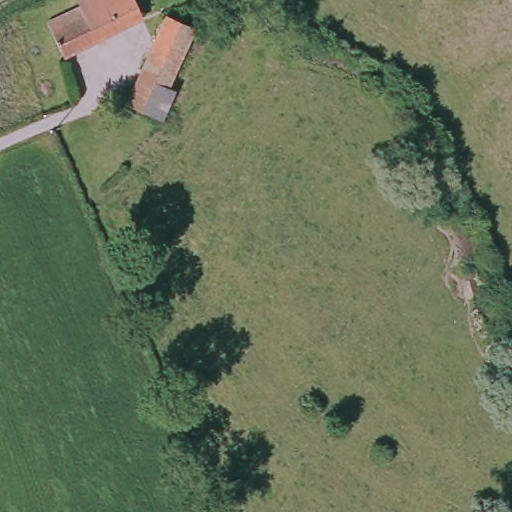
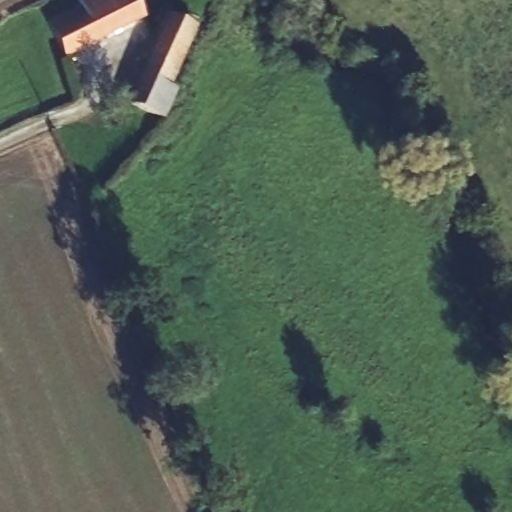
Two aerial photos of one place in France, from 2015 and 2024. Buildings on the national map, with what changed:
unchanged [(43,31),(112,0),(146,0),(155,18),(138,24),(140,28),(59,65),(43,31)]
unchanged [(147,113),(145,116),(123,106),(168,8),(192,28),(167,79),(171,81),(175,84),(165,106),(173,111),(167,123),(157,118),(147,113)]

